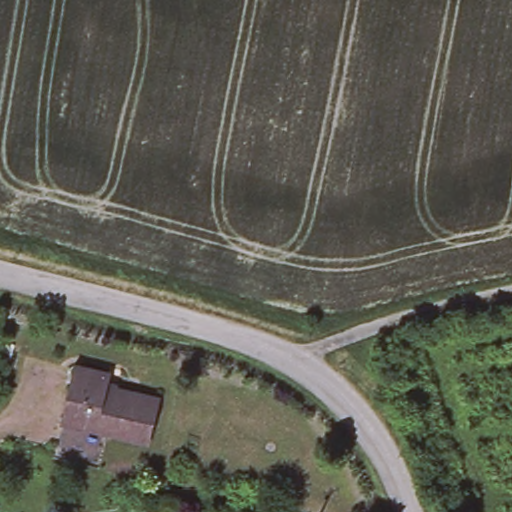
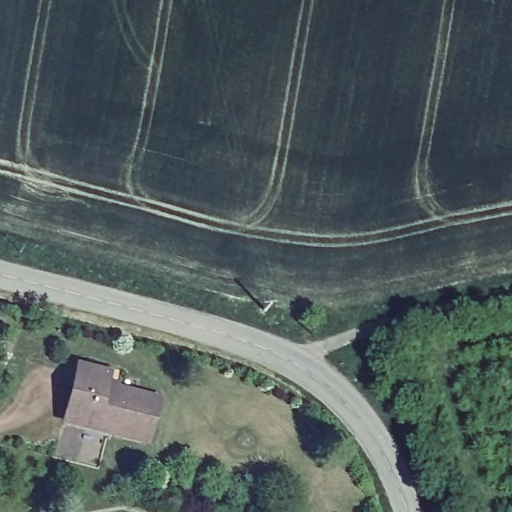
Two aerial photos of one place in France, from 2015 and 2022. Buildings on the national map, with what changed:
unchanged [(157,399),(147,442),(65,421),(78,367),(108,374),(105,386),(157,399)]

